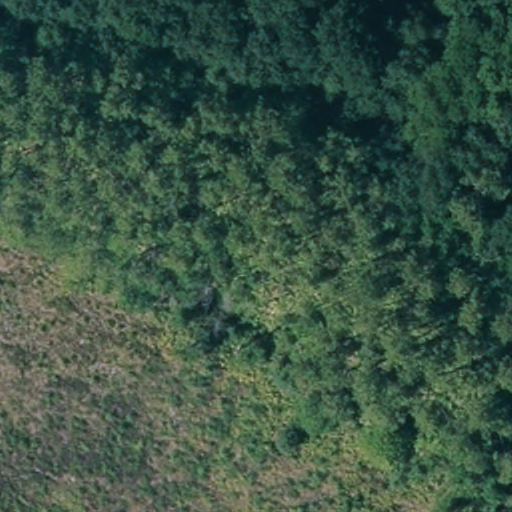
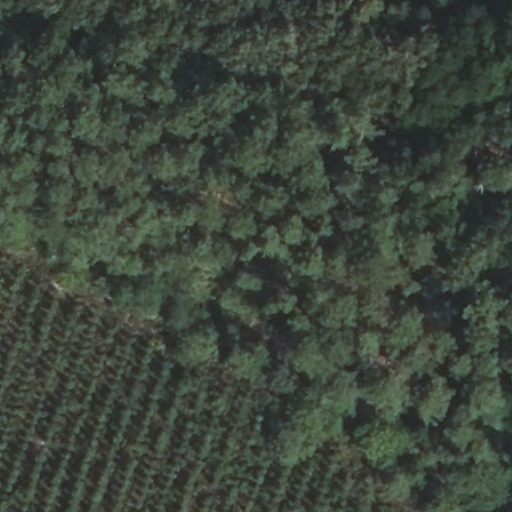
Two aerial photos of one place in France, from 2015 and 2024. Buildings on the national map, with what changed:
[]

